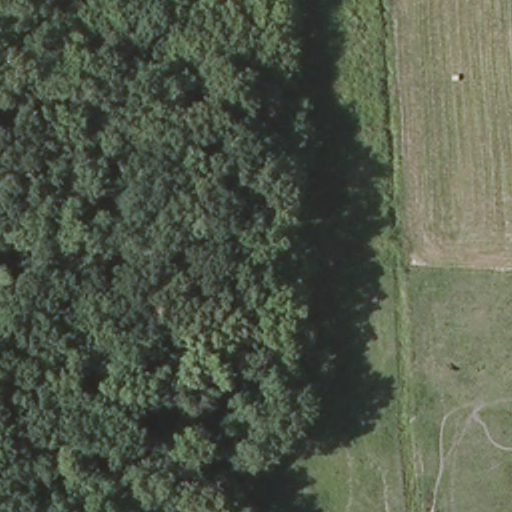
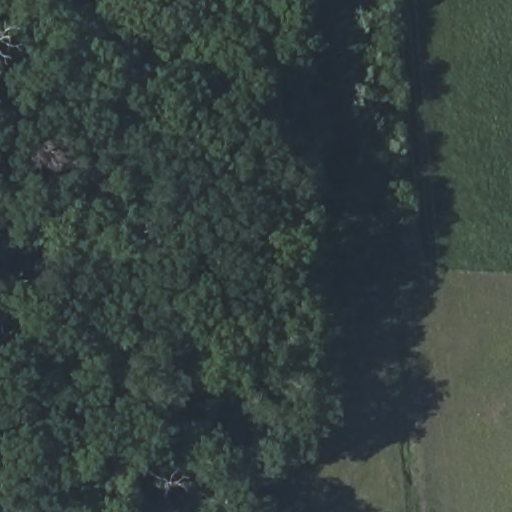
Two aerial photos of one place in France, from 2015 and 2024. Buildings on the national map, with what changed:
[]

